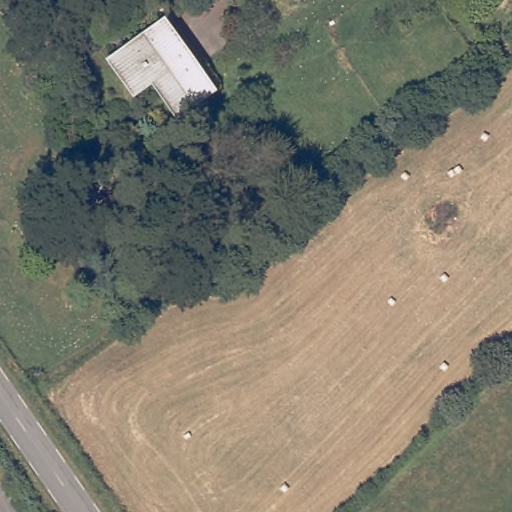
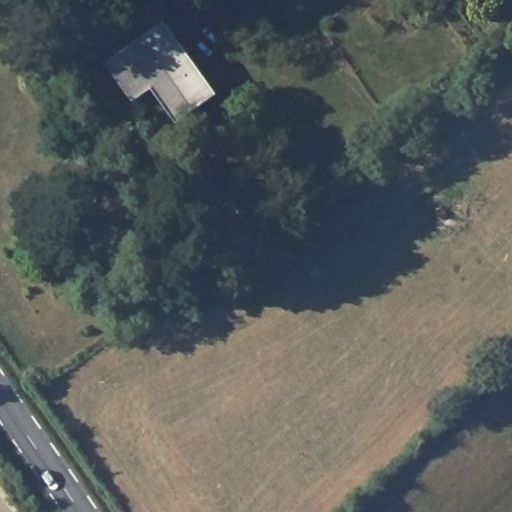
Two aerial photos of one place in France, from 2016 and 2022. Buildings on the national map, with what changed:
unchanged [(186,60),(191,58),(217,92),(176,121),(151,88),(135,100),(110,64),(162,28),(186,60)]

